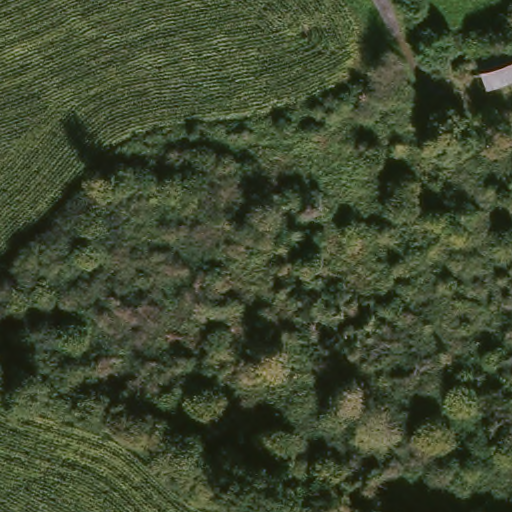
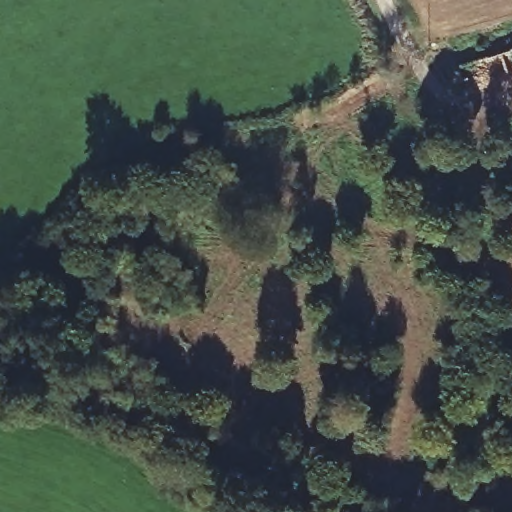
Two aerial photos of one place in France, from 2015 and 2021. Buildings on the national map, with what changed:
unchanged [(489,89),(485,75),(462,83),(457,67),(512,49),(512,81),(503,84),(489,89)]

